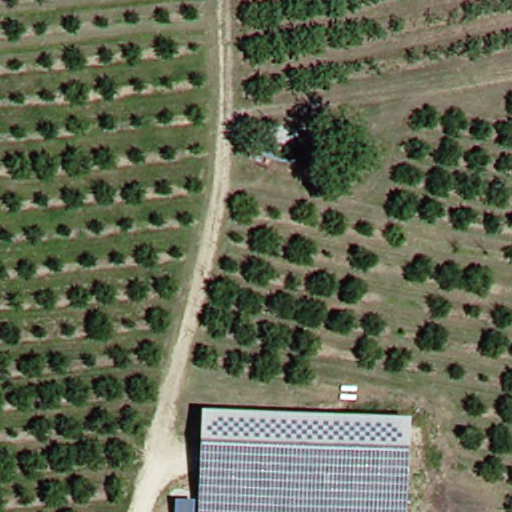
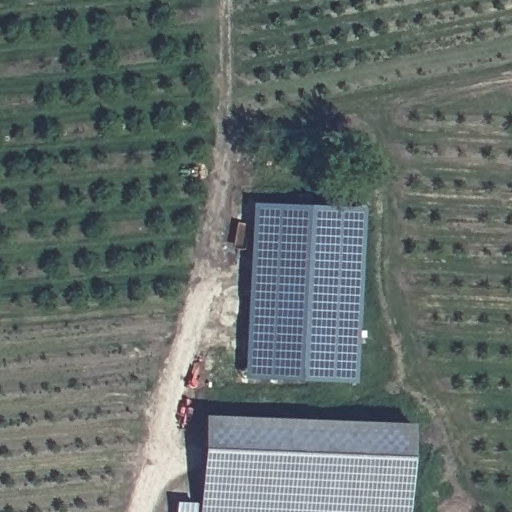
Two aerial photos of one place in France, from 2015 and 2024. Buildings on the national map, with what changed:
new [(257,201),(366,207),(356,381),(246,376),(257,201)]
unchanged [(198,512),(204,416),(409,431),(404,512),(198,512)]
unchanged [(190,512),(172,512),(172,502),(190,502),(190,512)]

